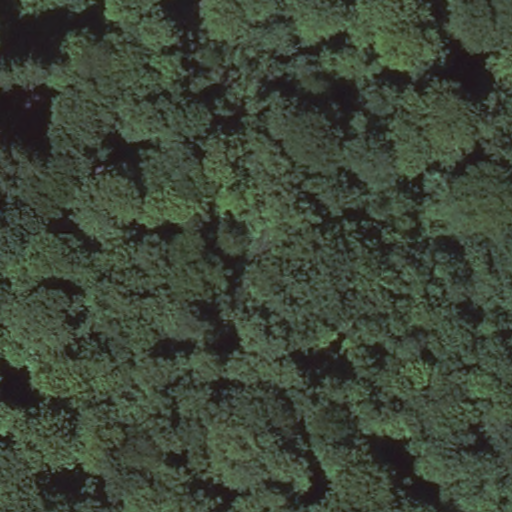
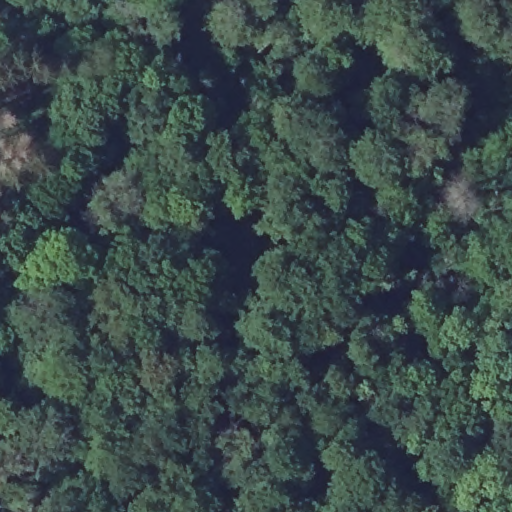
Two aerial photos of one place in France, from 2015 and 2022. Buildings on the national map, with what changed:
unchanged [(27,112),(0,106),(11,80),(30,82),(27,112)]

